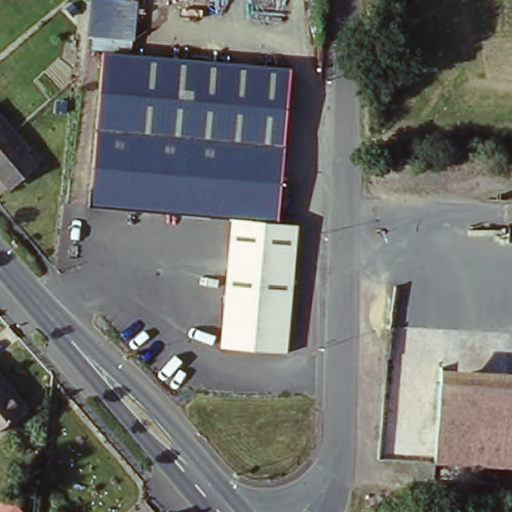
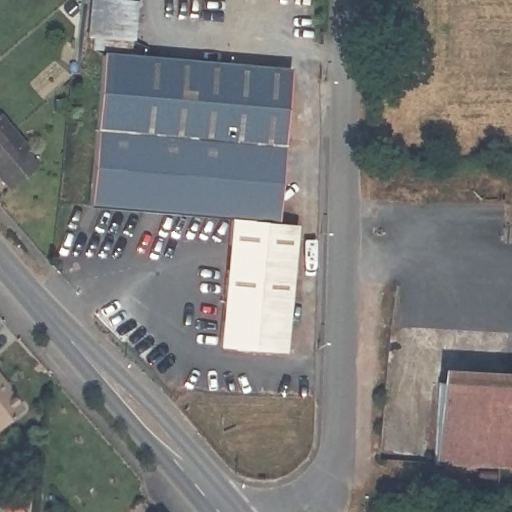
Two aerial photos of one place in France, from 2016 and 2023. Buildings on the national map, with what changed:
unchanged [(134,0),(130,39),(88,33),(88,0),(134,0)]
unchanged [(291,66),(281,219),(301,220),(295,348),(229,344),(236,215),(91,207),(100,56),(291,66)]
unchanged [(0,122),(0,120),(1,121),(0,122)]
unchanged [(22,156),(33,168),(8,190),(0,181),(0,145),(4,141),(0,136),(0,122),(1,121),(10,132),(12,135),(25,150),(27,151),(22,156)]
unchanged [(0,145),(0,136),(4,141),(0,145)]
unchanged [(434,466),(437,385),(512,388),(512,468),(434,466)]
unchanged [(0,431),(0,388),(21,413),(0,431)]

